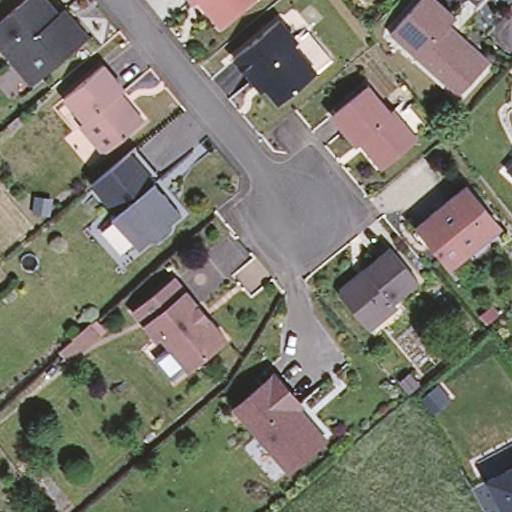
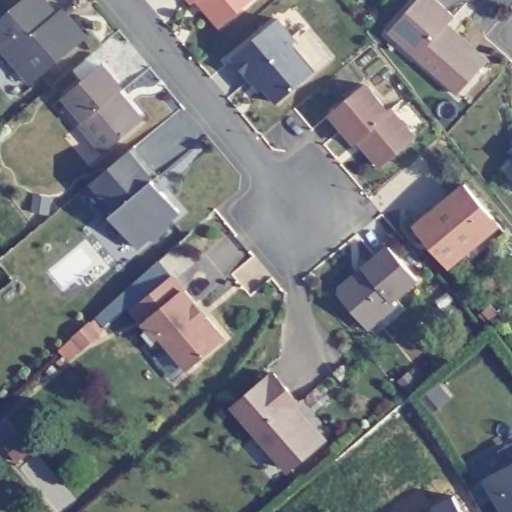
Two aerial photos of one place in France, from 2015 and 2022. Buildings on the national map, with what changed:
unchanged [(0,38),(0,22),(26,0),(52,0),(62,12),(69,7),(92,34),(85,39),(44,73),(36,80),(19,61),(0,38)]
unchanged [(211,0),(246,0),(226,18),(211,0)]
unchanged [(461,91),(419,52),(391,26),(398,19),(416,0),(444,0),(457,13),(450,20),(492,58),(485,65),(461,91)]
unchanged [(252,75),(234,53),(279,16),(296,36),(293,40),(316,68),(279,99),(266,84),(262,87),(252,75)]
unchanged [(124,91),(129,97),(132,99),(148,116),(109,151),(85,123),(89,119),(68,95),(107,61),(129,86),(124,91)]
unchanged [(422,134),(387,163),(372,145),(375,142),(368,134),(362,141),(338,111),(372,81),(396,108),(399,106),(419,130),(422,134)]
unchanged [(160,179),(155,182),(165,194),(182,214),(170,223),(170,229),(155,241),(149,240),(137,250),(112,217),(117,213),(93,183),(135,149),(160,179)]
unchanged [(507,165),(512,159),(512,170),(507,165)]
unchanged [(445,255),(417,223),(467,181),(495,214),(501,222),(485,235),(467,250),(451,263),(445,255)]
unchanged [(365,316),(341,289),(342,280),(357,268),(366,260),(392,238),(419,272),(393,293),(397,298),(383,310),(369,322),(365,316)]
unchanged [(162,327),(157,331),(135,302),(174,269),(197,296),(208,309),(226,331),(187,361),(162,327)]
unchanged [(281,371),(306,401),(302,403),(314,418),(329,437),(294,467),(241,404),(281,371)]
unchanged [(485,479),(512,464),(512,512),(501,512),(485,479)]
new [(464,512),(429,512),(437,508),(436,506),(455,495),(464,512)]

